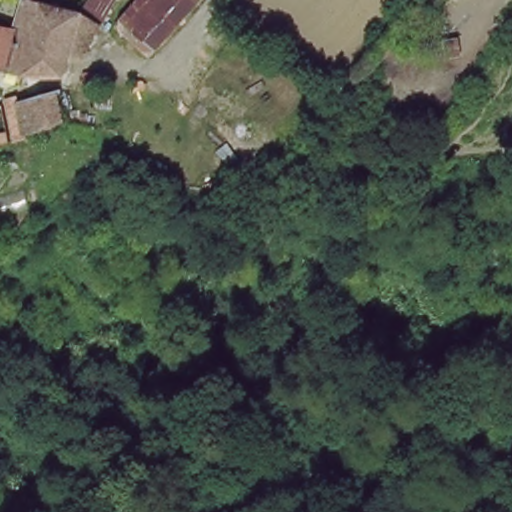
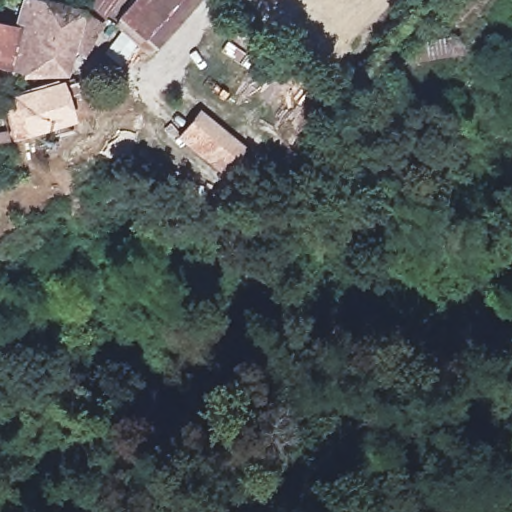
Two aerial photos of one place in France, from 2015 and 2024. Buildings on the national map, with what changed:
unchanged [(11,40),(7,62),(0,61),(0,18),(11,20),(16,21),(20,0),(31,0),(79,11),(81,7),(85,0),(113,0),(81,50),(67,49),(11,40)]
unchanged [(135,0),(194,0),(137,61),(106,32),(135,0)]
unchanged [(56,88),(9,101),(19,81),(21,65),(7,62),(11,40),(67,49),(62,69),(56,88)]
unchanged [(6,139),(9,101),(56,88),(62,122),(6,139)]
new [(202,115),(246,149),(227,174),(183,140),(202,115)]

